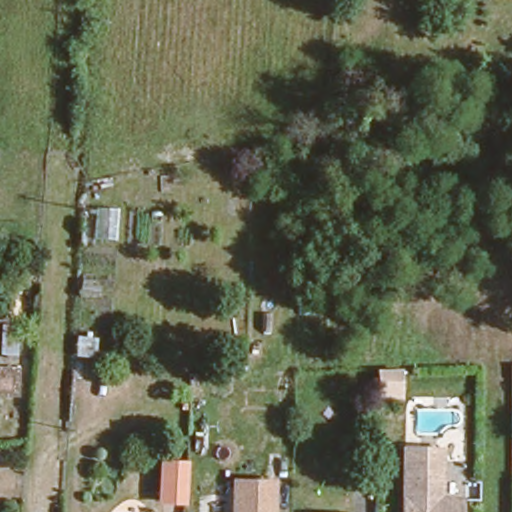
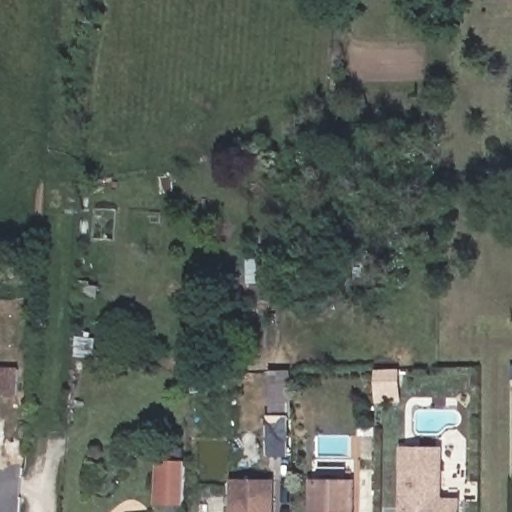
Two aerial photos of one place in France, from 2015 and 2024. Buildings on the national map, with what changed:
unchanged [(394,445),(436,446),(436,499),(456,500),(455,512),(392,512),(394,445)]
unchanged [(184,504),(156,503),(160,458),(190,459),(184,504)]
unchanged [(256,479),(271,479),(270,512),(231,512),(232,479),(256,479)]
new [(311,479),(352,479),(351,512),(311,512),(311,479)]

